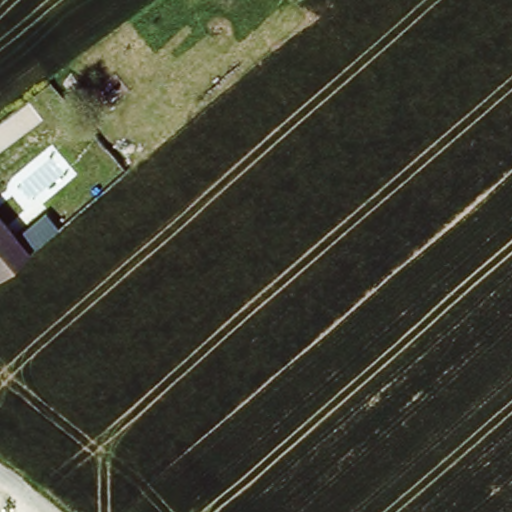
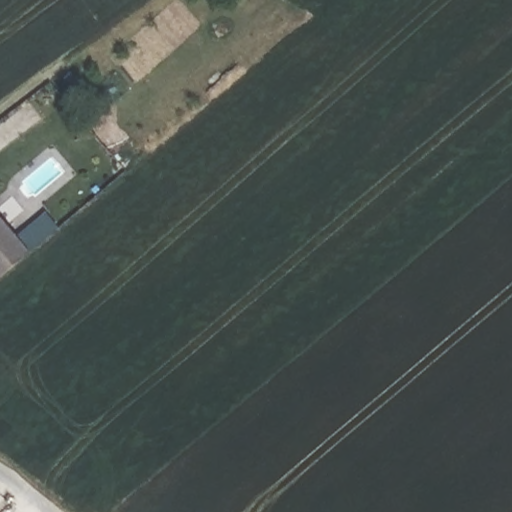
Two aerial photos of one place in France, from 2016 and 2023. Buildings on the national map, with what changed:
unchanged [(0,214),(32,252),(0,278),(0,214)]
unchanged [(26,233),(45,214),(58,225),(40,246),(26,233)]

